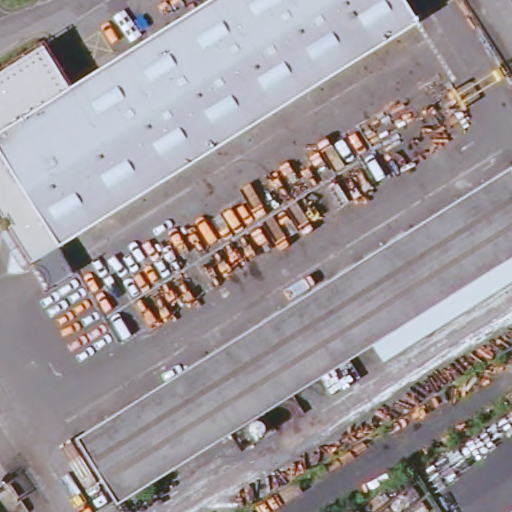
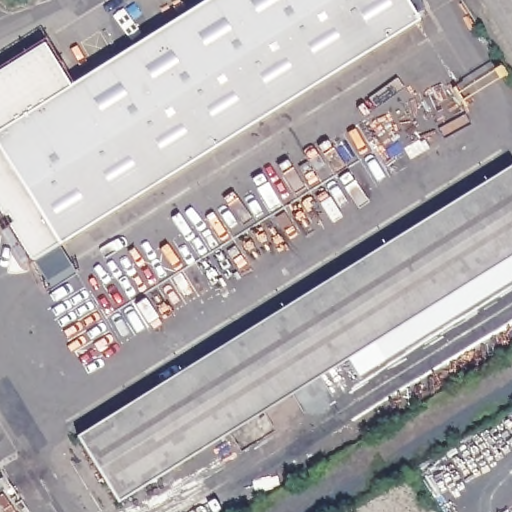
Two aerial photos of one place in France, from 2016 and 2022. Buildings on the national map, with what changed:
unchanged [(67,87),(205,0),(403,0),(415,18),(56,245),(0,154),(0,71),(42,45),(67,87)]
unchanged [(480,0),(512,0),(512,52),(480,0)]
unchanged [(77,280),(50,296),(0,216),(0,154),(56,245),(77,280)]
unchanged [(79,436),(512,166),(512,256),(119,501),(79,436)]
unchanged [(385,362),(375,347),(512,262),(512,284),(385,362)]

